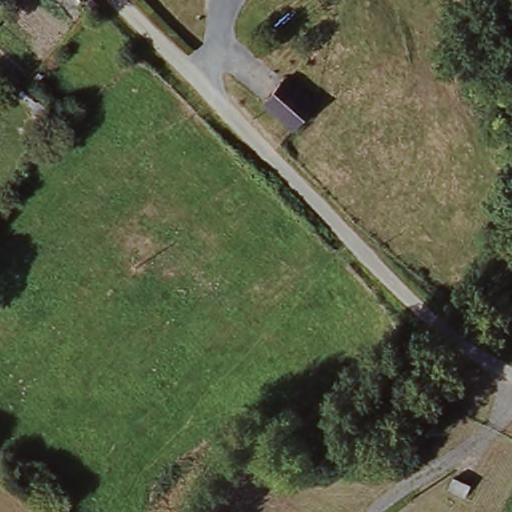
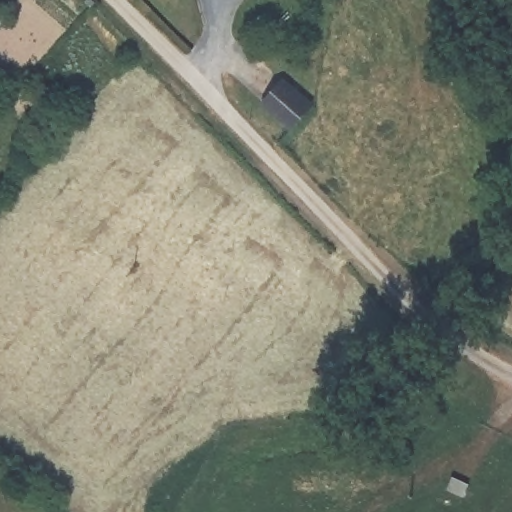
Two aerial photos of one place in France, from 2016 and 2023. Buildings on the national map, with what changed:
unchanged [(270,104),(287,83),(317,106),(298,128),(270,104)]
unchanged [(467,483),(461,494),(444,485),(452,474),(467,483)]

